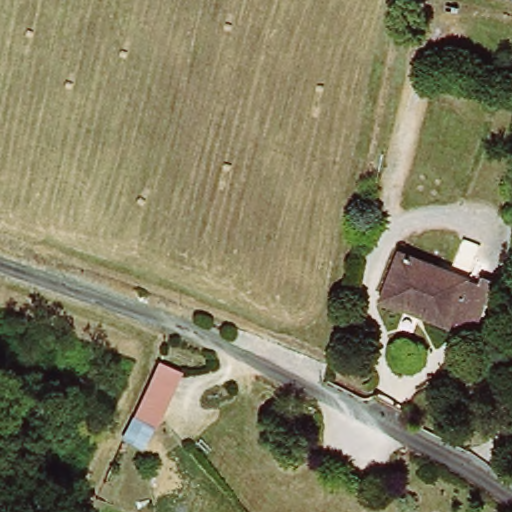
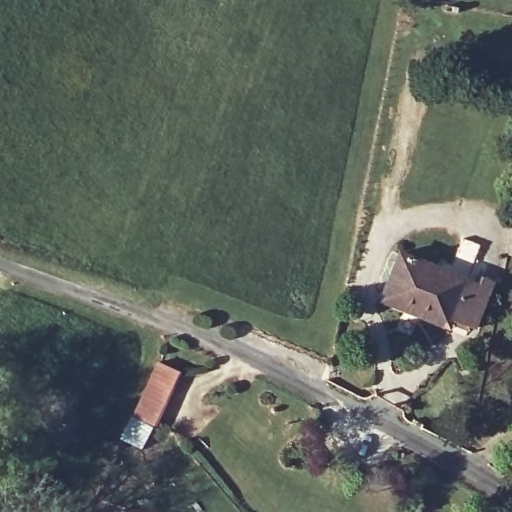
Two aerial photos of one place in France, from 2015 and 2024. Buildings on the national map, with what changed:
unchanged [(466,322),(376,290),(395,249),(470,279),(474,272),(485,277),(466,322)]
unchanged [(159,359),(182,370),(144,447),(121,437),(159,359)]

